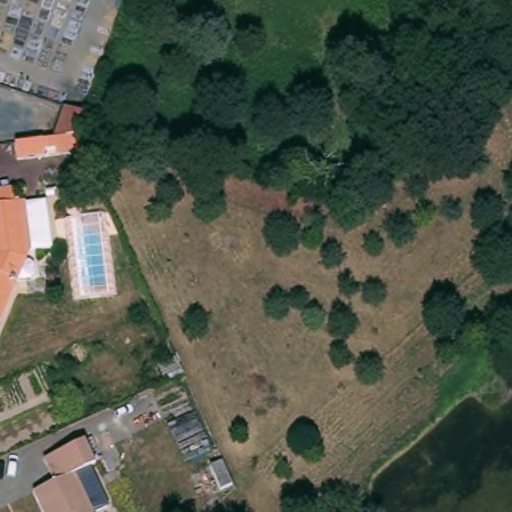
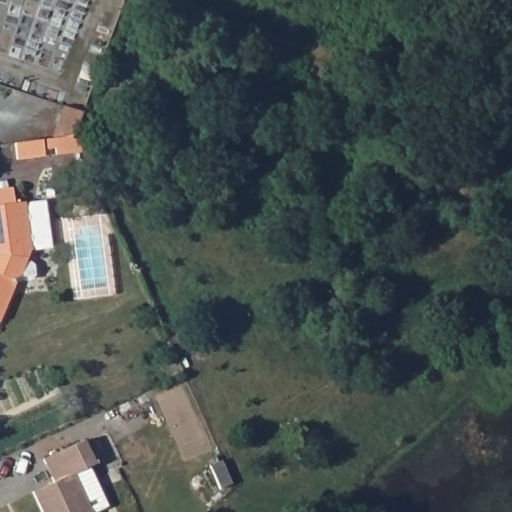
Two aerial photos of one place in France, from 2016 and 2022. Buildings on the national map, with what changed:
unchanged [(78,135),(85,150),(58,153),(57,149),(46,150),(47,155),(18,159),(15,144),(51,139),(62,106),(70,109),(82,113),(77,128),(75,134),(78,135)]
unchanged [(30,204),(49,202),(54,248),(26,251),(30,279),(19,280),(3,321),(0,320),(0,206),(0,190),(17,188),(19,204),(30,202),(30,204)]
unchanged [(36,490),(57,480),(46,458),(87,439),(98,463),(91,466),(110,504),(95,511),(95,512),(46,512),(36,490)]
unchanged [(227,488),(217,466),(229,460),(239,483),(227,488)]

